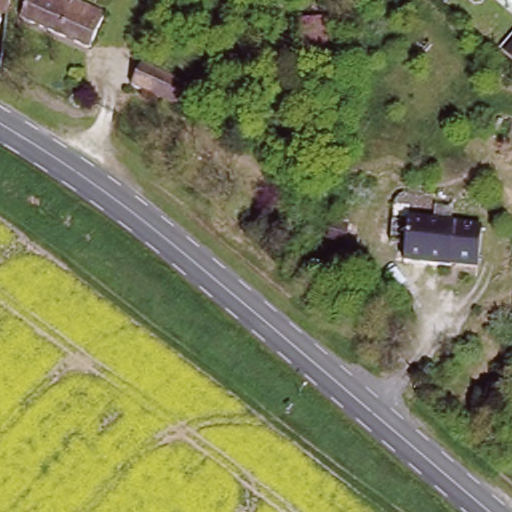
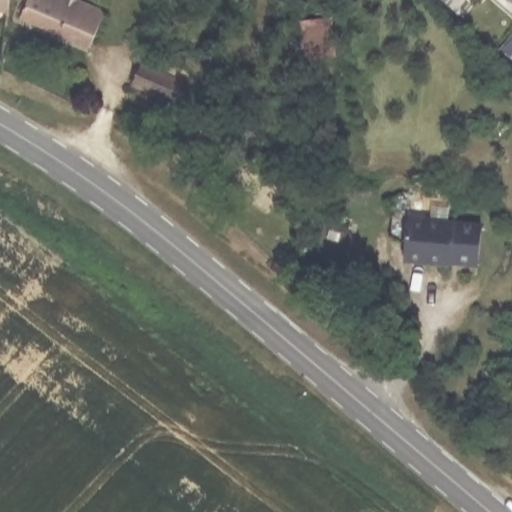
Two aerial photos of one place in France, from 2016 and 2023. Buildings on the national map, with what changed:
unchanged [(11,0),(11,15),(0,14),(0,0),(11,0)]
unchanged [(31,3),(23,0),(80,0),(109,14),(89,49),(22,23),(31,3)]
unchanged [(132,90),(143,61),(192,81),(178,109),(132,90)]
unchanged [(481,264),(452,262),(452,265),(410,261),(416,218),(486,224),(481,264)]

